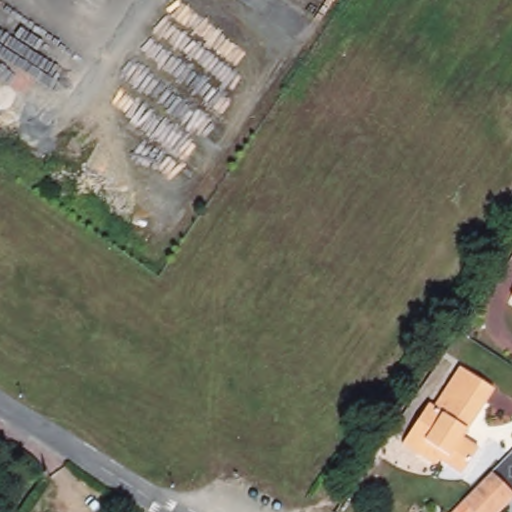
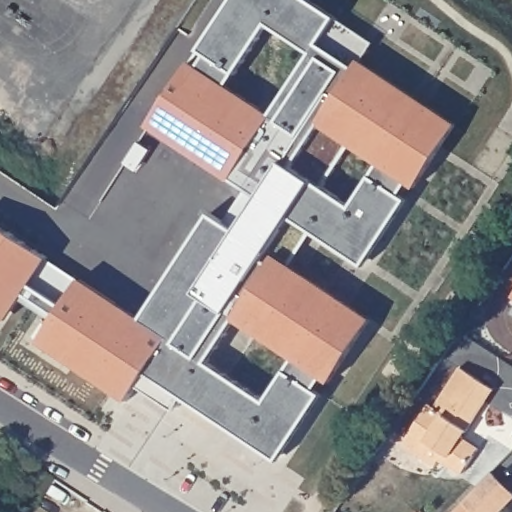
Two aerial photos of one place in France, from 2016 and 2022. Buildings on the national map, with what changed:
new [(181,397),(174,409),(138,384),(127,400),(38,342),(53,319),(23,299),(8,322),(0,317),(0,226),(141,318),(211,212),(225,220),(246,189),(149,126),(234,0),(313,0),(337,16),(376,43),(365,60),(460,123),(417,188),(409,184),(402,194),(410,199),(364,267),(311,230),(291,263),(374,318),(330,384),(323,379),(316,389),(323,394),(278,461),(181,397)]
unchanged [(512,291),(512,299),(508,297),(512,291)]
unchanged [(399,445),(409,429),(424,404),(429,407),(455,369),(489,389),(458,439),(474,449),(457,474),(435,460),(431,466),(399,445)]
new [(462,503),(493,473),(512,492),(512,499),(500,512),(453,512),(462,503)]

